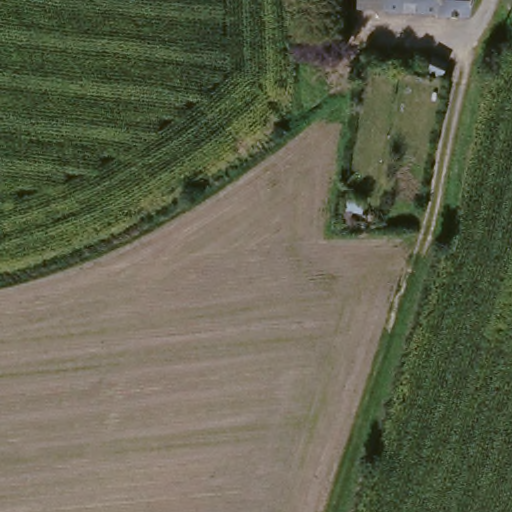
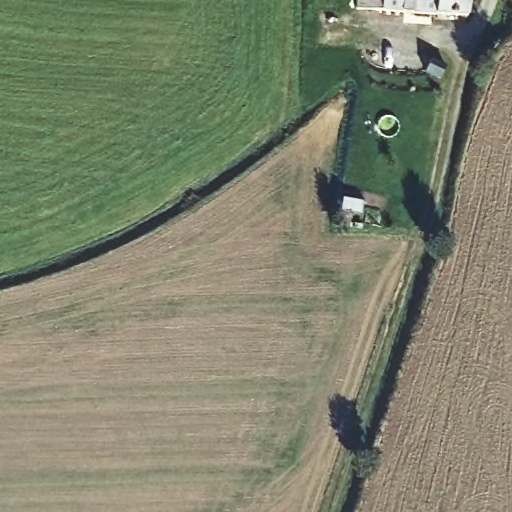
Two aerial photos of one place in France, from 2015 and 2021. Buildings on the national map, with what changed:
unchanged [(459,19),(349,14),(351,0),(461,0),(459,19)]

